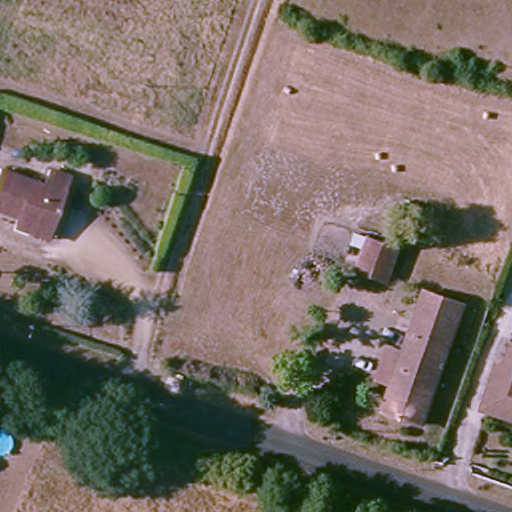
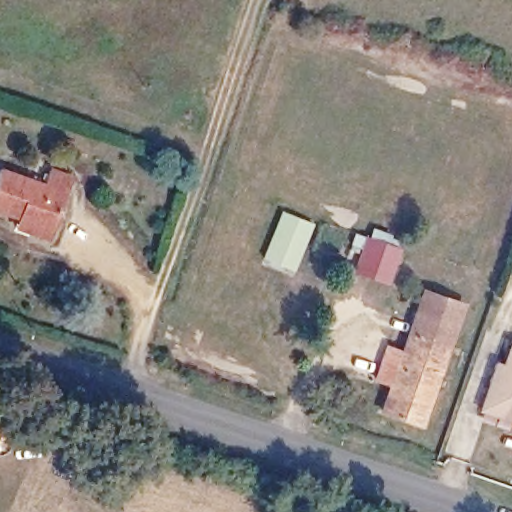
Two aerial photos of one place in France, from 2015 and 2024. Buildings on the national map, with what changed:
unchanged [(22,213),(0,204),(0,171),(3,164),(48,181),(54,165),(73,172),(55,224),(22,213)]
new [(281,210),(314,224),(294,271),(261,258),(281,210)]
unchanged [(392,245),(382,273),(355,264),(365,235),(392,245)]
unchanged [(391,352),(393,348),(404,353),(411,334),(417,336),(425,314),(418,312),(426,288),(468,304),(443,370),(423,424),(383,409),(392,386),(380,381),(391,352)]
unchanged [(512,340),(512,407),(490,400),(503,359),(510,339),(512,340)]

